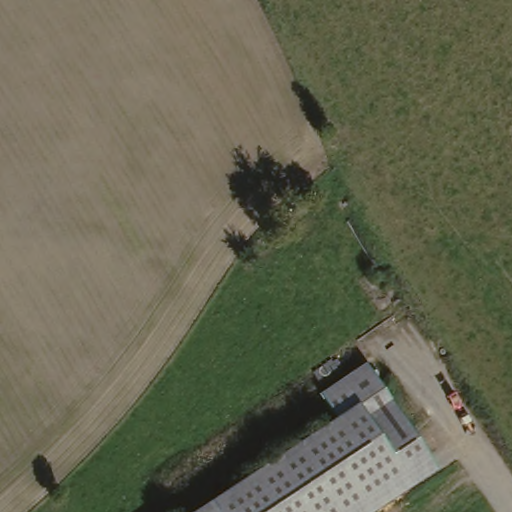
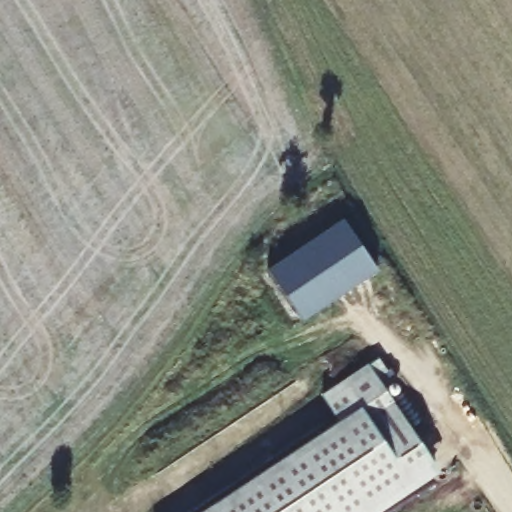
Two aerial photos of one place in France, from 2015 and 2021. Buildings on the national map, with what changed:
new [(345,222),(377,272),(300,321),(268,270),(345,222)]
unchanged [(342,420),(326,394),(373,365),(389,390),(342,420)]
unchanged [(342,420),(389,390),(430,455),(338,512),(193,512),(342,420)]

